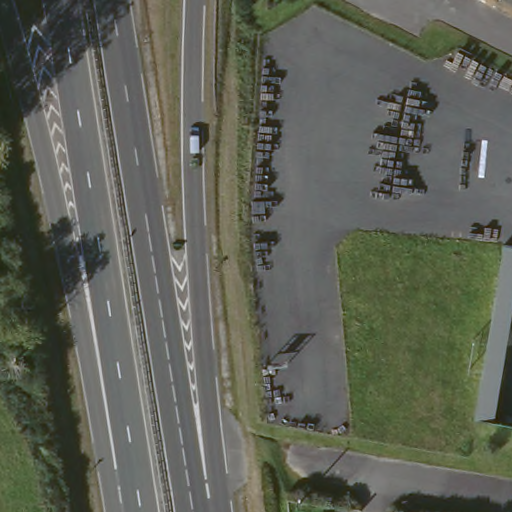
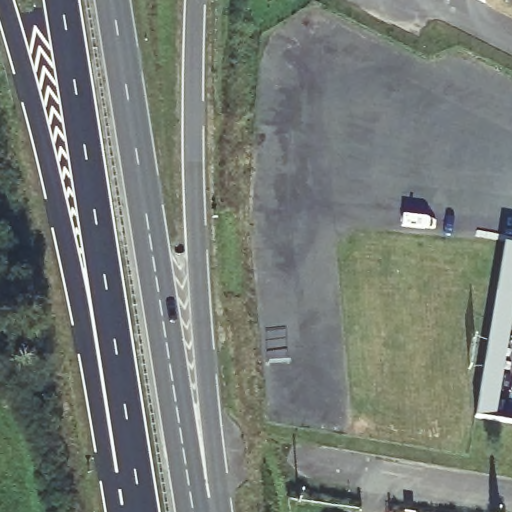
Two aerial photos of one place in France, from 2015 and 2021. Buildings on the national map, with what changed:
unchanged [(512,338),(498,421),(472,417),(502,242),(512,244),(512,338)]

